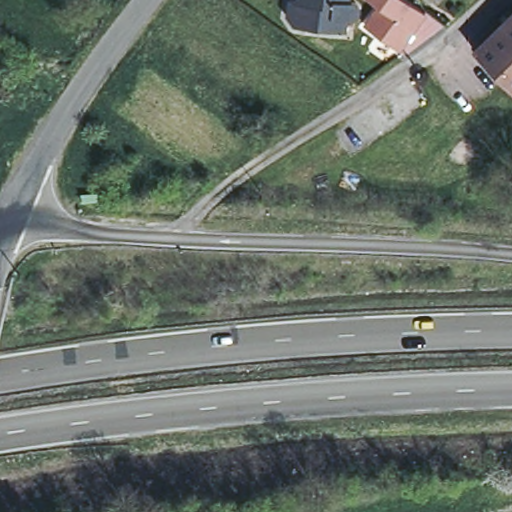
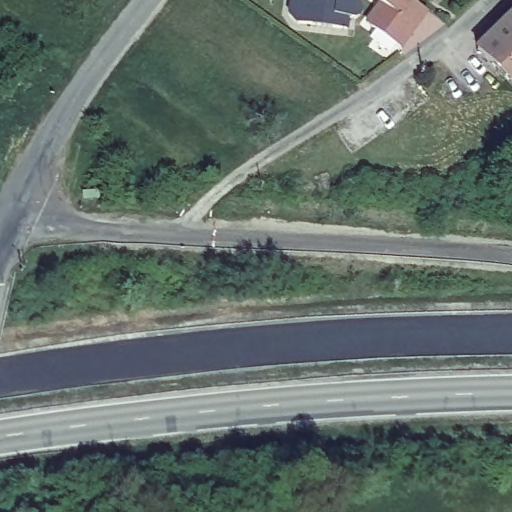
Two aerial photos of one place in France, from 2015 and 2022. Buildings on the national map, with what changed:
unchanged [(352,2),(355,6),(354,13),(347,19),(340,18),(338,30),(291,24),(292,19),(283,14),(285,0),(346,0),(352,2)]
unchanged [(382,11),(368,0),(390,0),(382,11)]
unchanged [(475,47),(512,11),(512,85),(475,47)]

